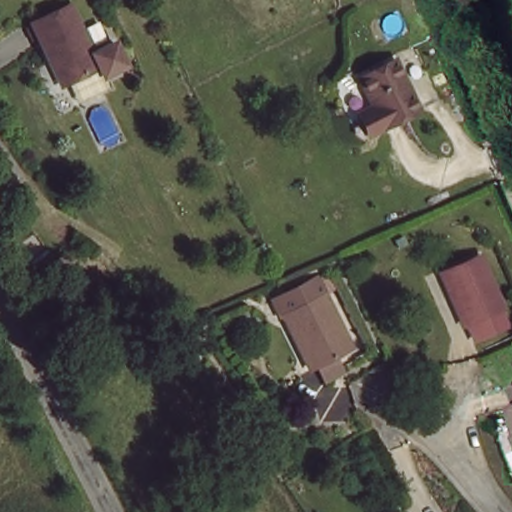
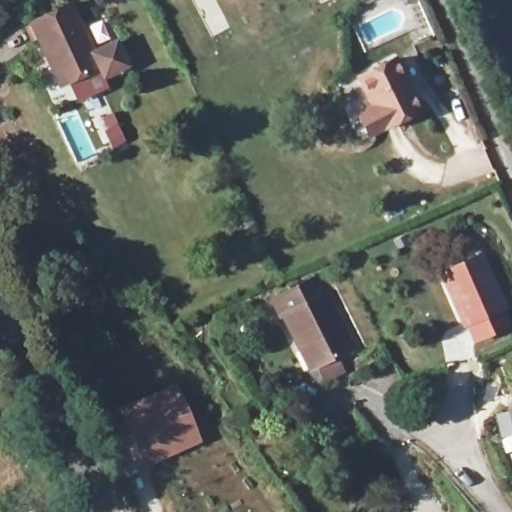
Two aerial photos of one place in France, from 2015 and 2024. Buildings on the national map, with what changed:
unchanged [(70,98),(61,80),(53,83),(40,55),(22,20),(62,2),(85,51),(108,40),(119,63),(95,74),(100,83),(70,98)]
unchanged [(365,110),(375,105),(362,76),(398,60),(422,111),(375,133),(365,110)]
unchanged [(505,311),(467,328),(443,278),(483,261),(505,311)]
unchanged [(327,385),(318,369),(311,373),(297,347),(283,321),(282,322),(272,305),(317,281),(327,298),(355,352),(337,360),(345,375),(327,385)]
new [(175,382),(202,442),(137,468),(112,408),(175,382)]

